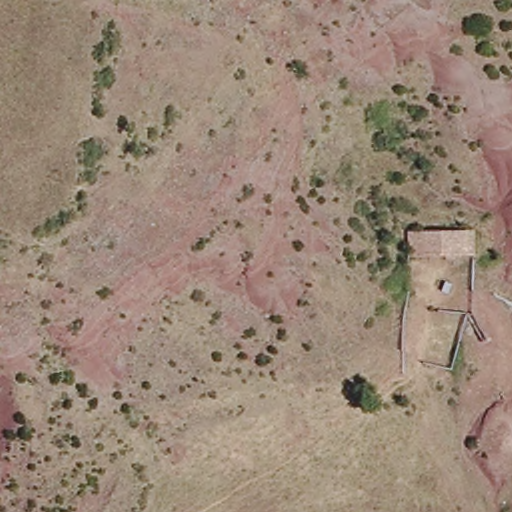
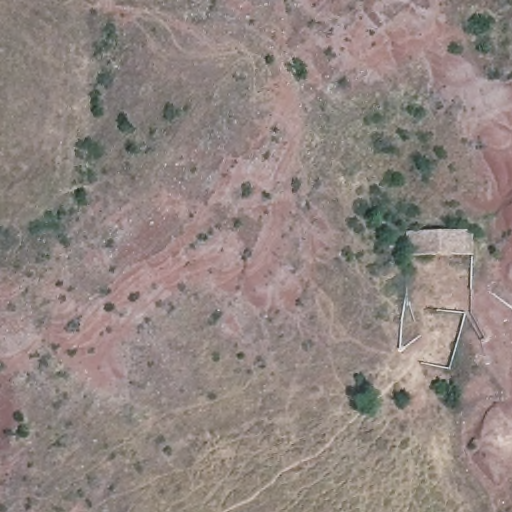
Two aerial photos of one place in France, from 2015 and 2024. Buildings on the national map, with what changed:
unchanged [(406,257),(407,228),(470,227),(471,254),(406,257)]

